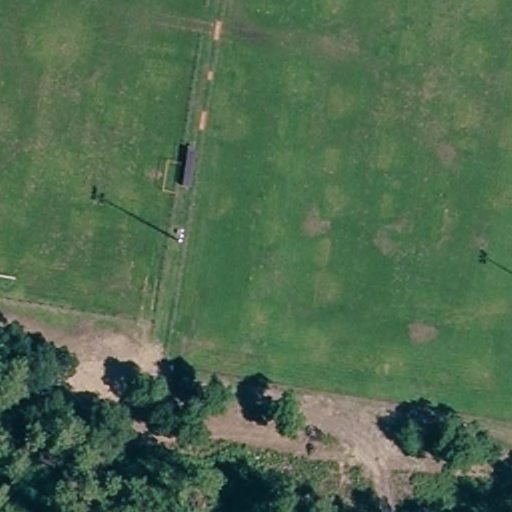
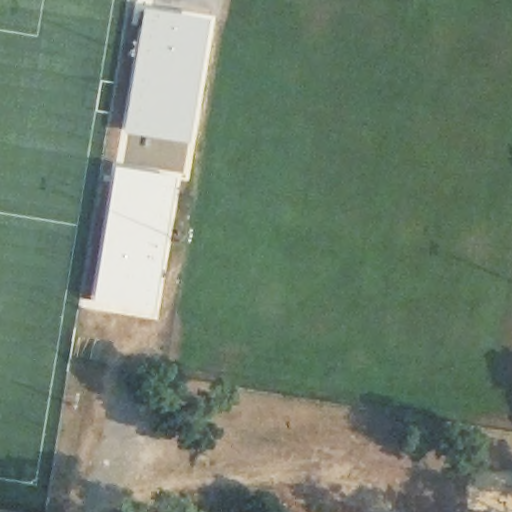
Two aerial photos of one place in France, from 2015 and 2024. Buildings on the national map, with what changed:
new [(125,134),(122,134),(143,7),(212,18),(184,176),(176,175),(117,165),(125,134)]
new [(114,164),(117,165),(176,175),(164,254),(152,311),(146,311),(145,314),(92,305),(114,164)]

